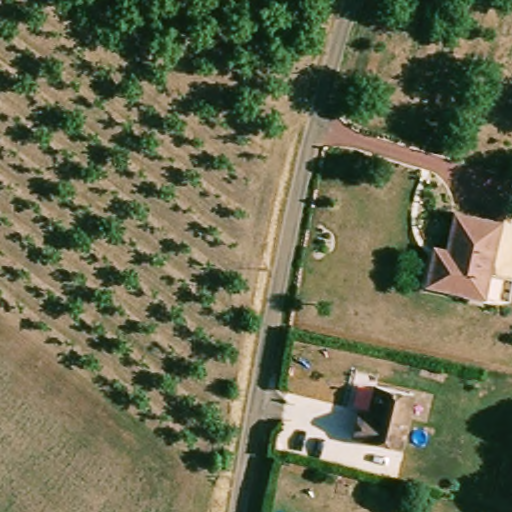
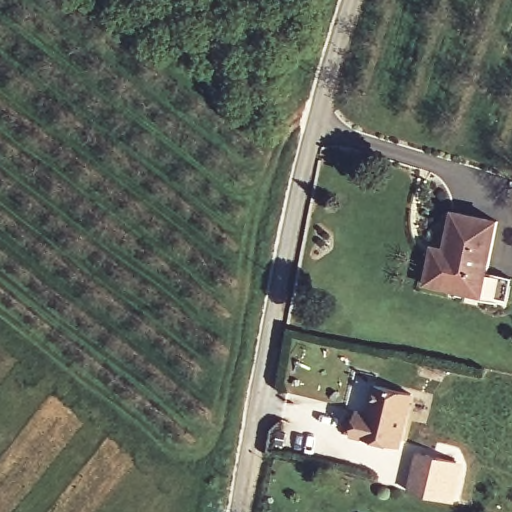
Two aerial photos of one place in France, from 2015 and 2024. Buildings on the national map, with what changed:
unchanged [(481,298),(426,285),(431,254),(446,259),(457,212),(498,221),(481,298)]
unchanged [(414,400),(399,452),(351,436),(357,409),(369,414),(379,388),(414,400)]
new [(458,502),(428,495),(405,489),(414,450),(438,454),(467,464),(458,502)]

